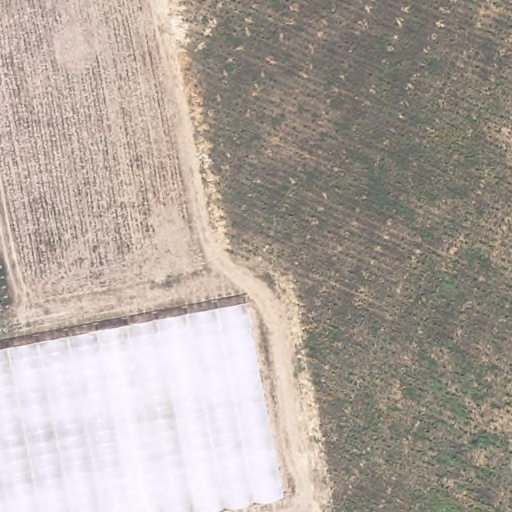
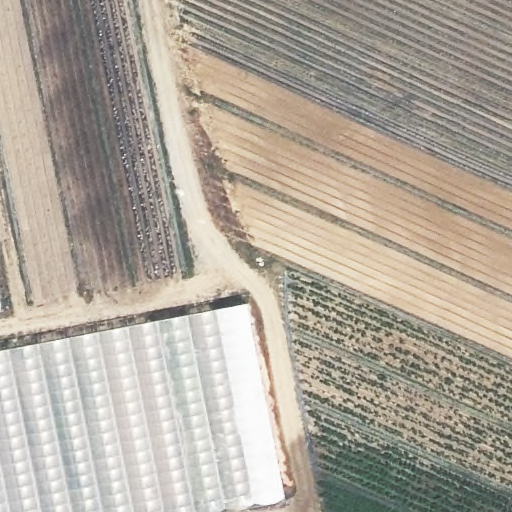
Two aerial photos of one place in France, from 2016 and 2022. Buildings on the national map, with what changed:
unchanged [(281,499),(213,512),(0,512),(0,348),(245,302),(281,499)]
unchanged [(0,309),(0,303),(1,309),(0,309)]

